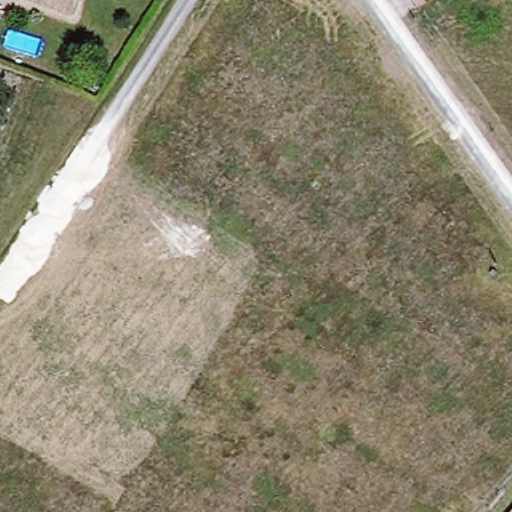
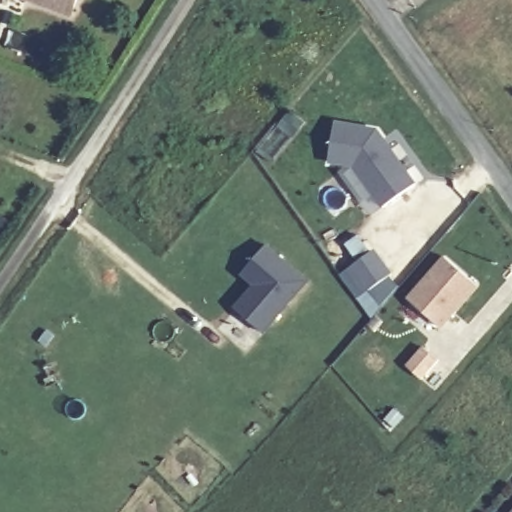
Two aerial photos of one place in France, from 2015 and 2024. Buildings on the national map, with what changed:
unchanged [(25,0),(77,0),(68,19),(25,0)]
new [(335,122),(377,130),(416,184),(385,206),(356,166),(328,161),(335,122)]
new [(356,260),(345,244),(359,234),(393,273),(391,275),(400,286),(374,315),(381,322),(372,331),(366,324),(371,318),(337,273),(356,260)]
new [(261,290),(247,279),(267,252),(311,285),(270,340),(240,318),(261,290)]
new [(445,257),(477,285),(440,327),(408,300),(445,257)]
new [(422,347),(438,360),(422,380),(407,366),(422,347)]
unchanged [(509,512),(512,508),(512,512),(509,512)]

